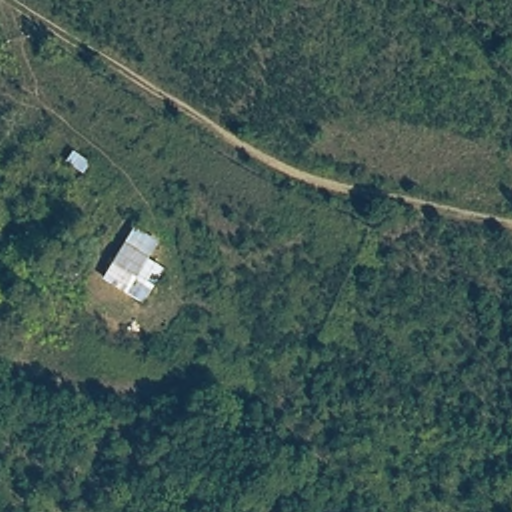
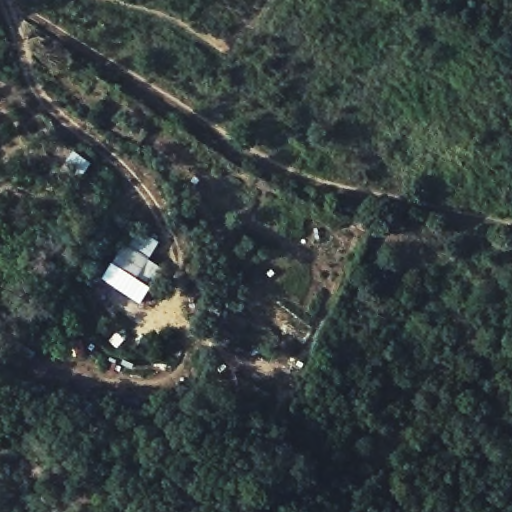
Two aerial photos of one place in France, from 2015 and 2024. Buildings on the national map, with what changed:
unchanged [(158,246),(148,261),(164,273),(143,308),(100,282),(133,231),(158,246)]

